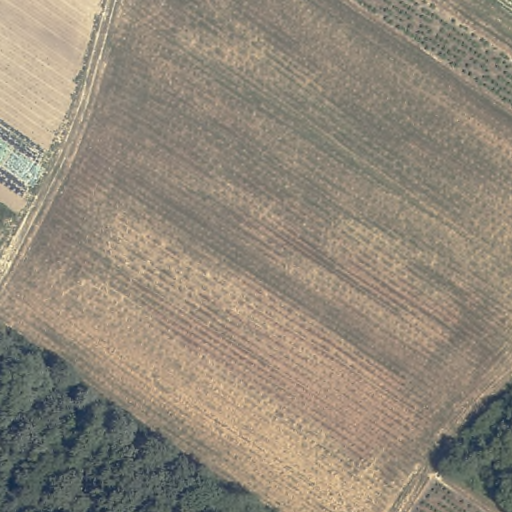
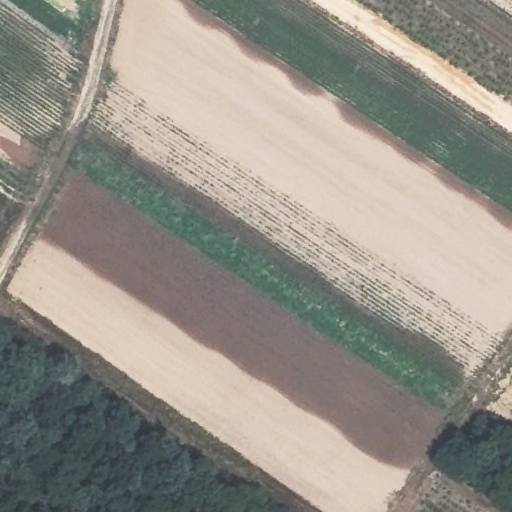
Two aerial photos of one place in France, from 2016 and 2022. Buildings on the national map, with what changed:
unchanged [(76,8),(87,14),(82,25),(58,13),(65,0),(67,0),(77,5),(76,8)]

